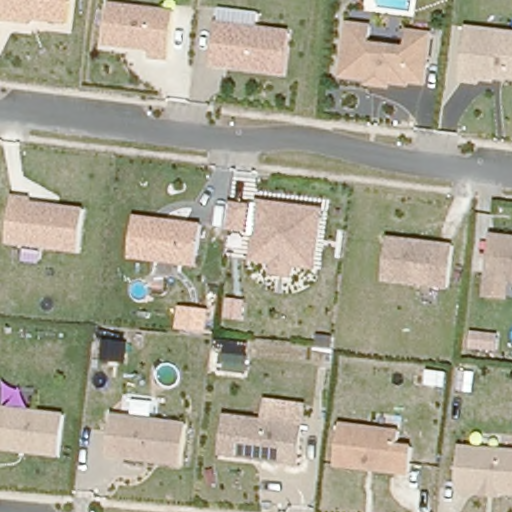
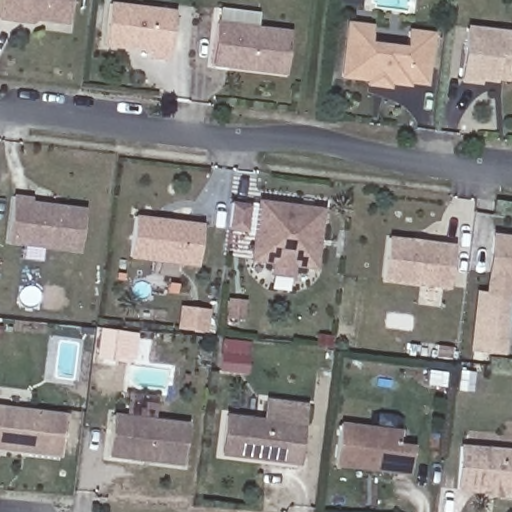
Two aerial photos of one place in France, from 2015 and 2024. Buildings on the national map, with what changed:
unchanged [(35,22),(35,24),(0,20),(0,12),(2,0),(70,0),(67,25),(35,22)]
unchanged [(151,59),(152,51),(107,45),(111,4),(175,11),(169,60),(151,59)]
unchanged [(214,66),(220,9),(255,13),(253,27),(290,32),(283,76),(214,66)]
unchanged [(426,86),(410,85),(410,88),(390,85),(390,90),(365,86),(367,81),(341,78),(348,22),(375,25),(373,42),(406,45),(409,29),(433,32),(426,86)]
unchanged [(497,80),(496,83),(483,81),(482,86),(461,84),(468,27),(512,31),(512,82),(497,80)]
unchanged [(14,200),(83,209),(78,253),(7,245),(14,200)]
unchanged [(252,264),(259,200),(325,209),(316,269),(297,267),(296,279),(271,277),(270,264),(252,264)]
unchanged [(135,215),(204,224),(198,268),(131,260),(135,215)]
unchanged [(510,300),(485,296),(492,234),(512,236),(512,292),(510,300)]
unchanged [(390,237),(455,245),(450,289),(385,283),(390,237)]
new [(503,355),(470,352),(476,291),(486,292),(485,296),(510,300),(503,355)]
new [(186,310),(210,314),(209,334),(184,330),(186,310)]
unchanged [(0,407),(65,414),(60,458),(0,451),(0,407)]
unchanged [(110,459),(113,414),(188,423),(182,469),(110,459)]
unchanged [(224,456),(224,414),(305,425),(300,464),(224,456)]
unchanged [(337,468),(341,424),(400,429),(401,444),(412,447),(410,476),(337,468)]
unchanged [(456,492),(461,446),(512,449),(512,496),(456,492)]

